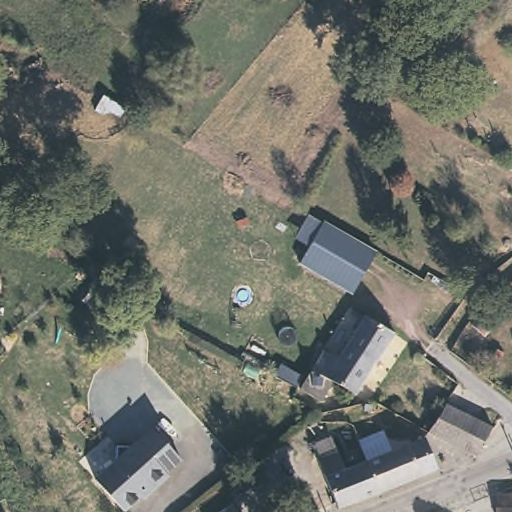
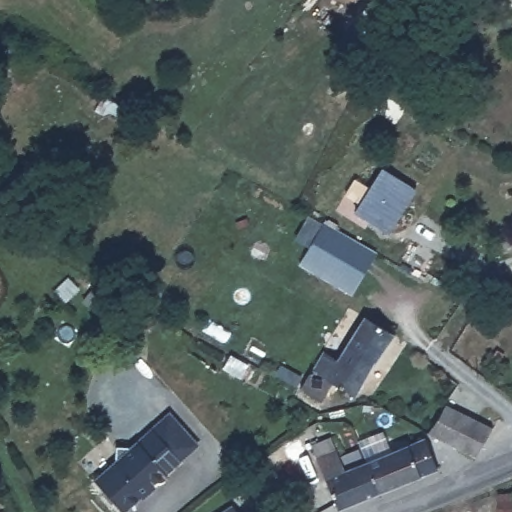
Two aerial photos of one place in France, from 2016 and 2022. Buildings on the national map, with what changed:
new [(389,234),(353,212),(382,167),(417,189),(389,234)]
unchanged [(376,250),(355,291),(310,267),(293,258),(300,247),(307,251),(325,222),(376,250)]
unchanged [(397,331),(378,360),(377,359),(348,341),(366,312),(397,331)]
demolished [(497,347),(490,359),(487,365),(456,344),(467,327),(497,347)]
unchanged [(377,359),(357,393),(335,381),(322,400),(302,388),(326,350),(338,358),(348,341),(377,359)]
unchanged [(488,424),(473,452),(427,428),(446,401),(488,424)]
unchanged [(117,459),(118,444),(132,446),(154,428),(182,461),(166,473),(168,476),(154,488),(150,487),(122,510),(96,477),(117,459)]
unchanged [(330,434),(342,466),(363,458),(377,490),(335,507),(313,449),(311,442),(330,434)]
unchanged [(422,435),(436,466),(377,490),(363,458),(422,435)]
unchanged [(512,512),(497,512),(497,491),(512,491),(512,512)]
unchanged [(222,512),(232,504),(238,512),(222,512)]

